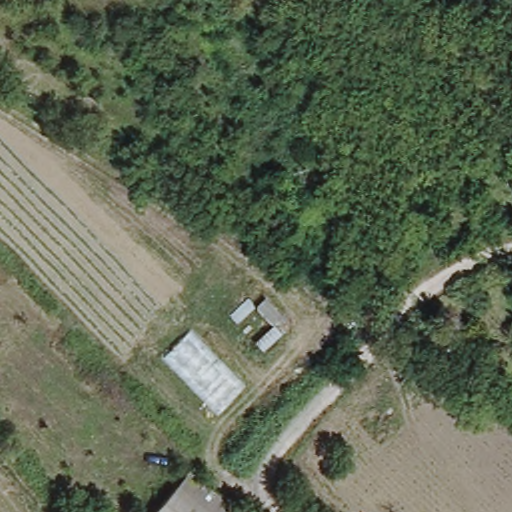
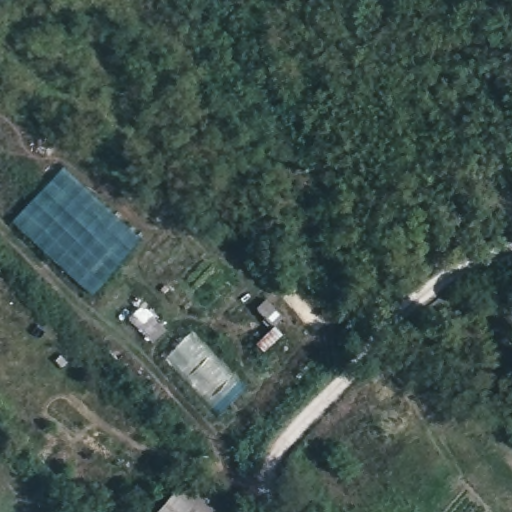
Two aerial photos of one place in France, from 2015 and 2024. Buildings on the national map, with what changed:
new [(63,166),(141,239),(92,295),(10,221),(63,166)]
new [(164,361),(194,332),(247,386),(219,415),(164,361)]
unchanged [(229,512),(155,512),(185,475),(229,512)]

